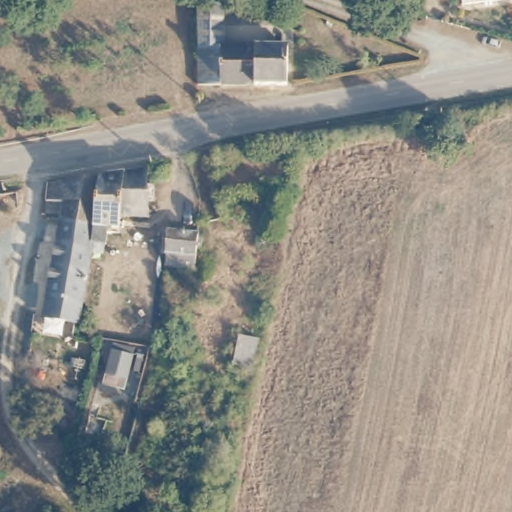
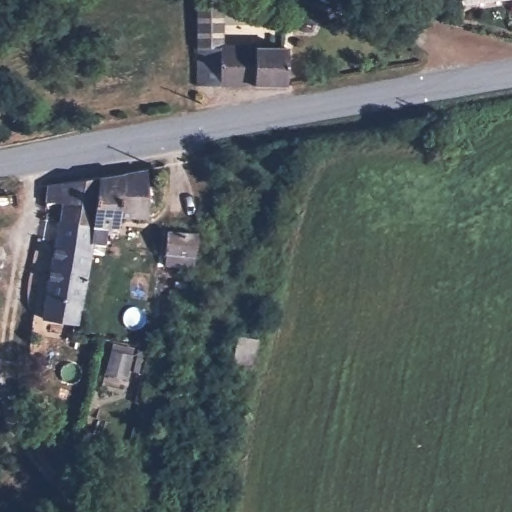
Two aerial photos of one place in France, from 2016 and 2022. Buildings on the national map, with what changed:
unchanged [(200,39),(200,0),(225,0),(224,40),(200,39)]
unchanged [(224,40),(294,44),(293,84),(200,81),(200,39),(224,40)]
unchanged [(59,221),(62,203),(46,200),(49,184),(101,174),(149,167),(156,214),(125,219),(124,229),(110,228),(106,244),(94,244),(93,249),(79,324),(45,317),(56,244),(59,221)]
unchanged [(198,265),(170,260),(172,249),(168,249),(168,227),(203,232),(200,253),(198,265)]
unchanged [(253,364),(232,360),(239,328),(258,332),(253,364)]

